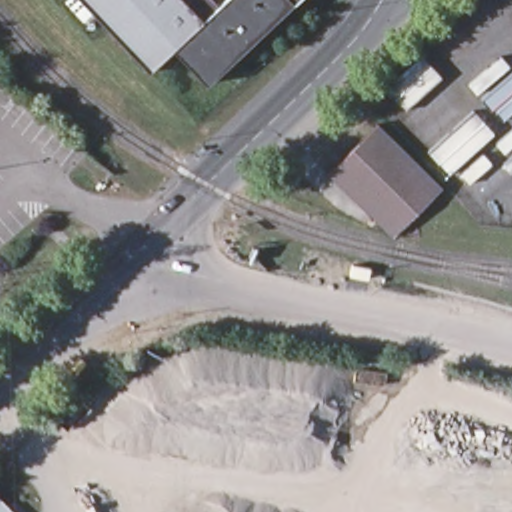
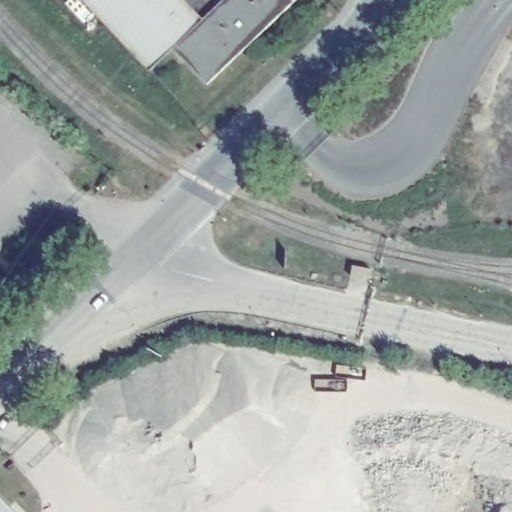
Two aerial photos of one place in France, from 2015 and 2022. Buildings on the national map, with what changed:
unchanged [(152,70),(86,0),(190,0),(207,19),(176,49),(152,70)]
unchanged [(227,0),(296,0),(297,1),(213,83),(176,49),(207,19),(227,0)]
unchanged [(296,0),(298,0),(297,1),(296,0)]
demolished [(328,177),(377,126),(443,189),(392,239),(328,177)]
unchanged [(0,512),(0,499),(13,512),(0,512)]

